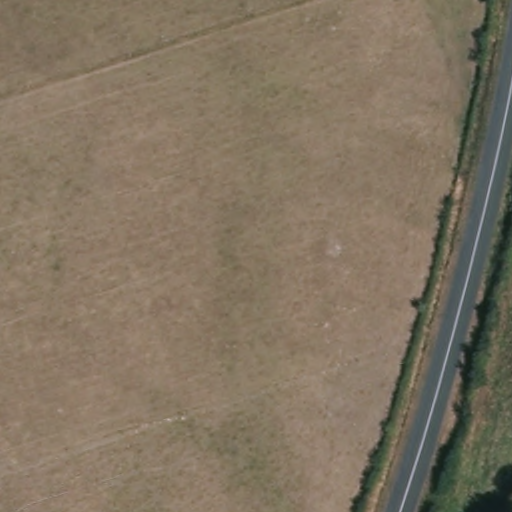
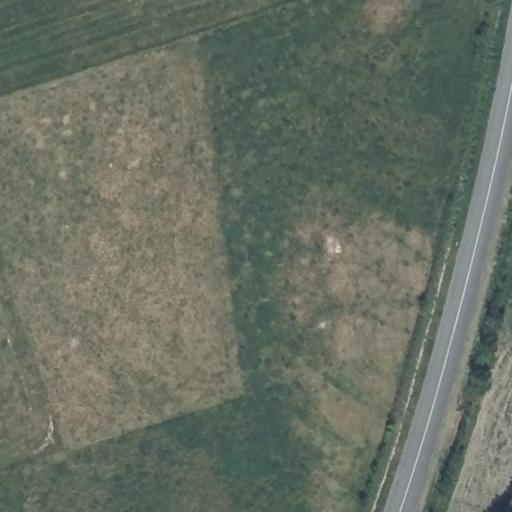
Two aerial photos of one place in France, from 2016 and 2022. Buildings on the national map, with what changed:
[]

